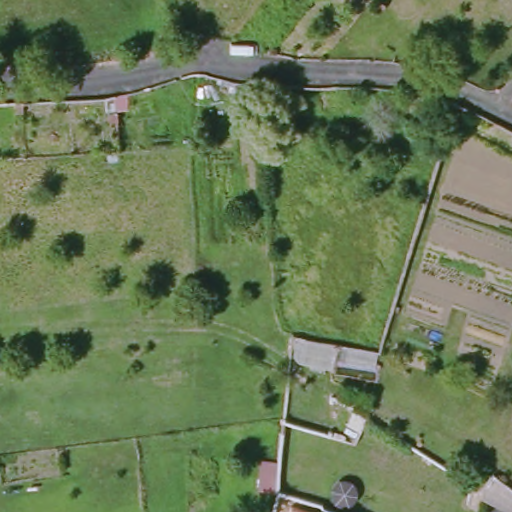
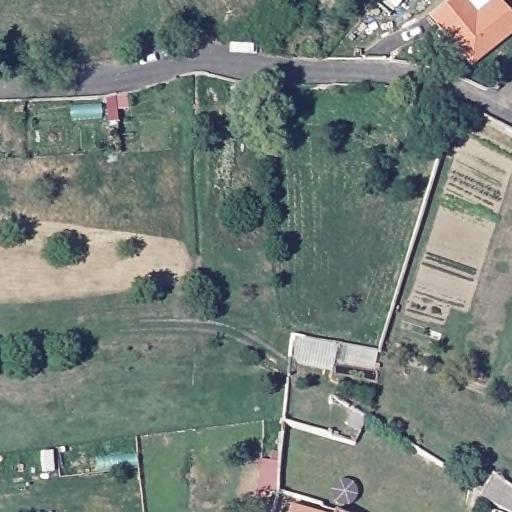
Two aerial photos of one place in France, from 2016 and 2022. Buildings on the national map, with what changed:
new [(454,0),(466,0),(475,12),(490,0),(501,0),(512,14),(512,34),(471,69),(430,20),(454,0)]
unchanged [(482,490),(494,474),(512,488),(512,490),(503,506),(482,490)]
unchanged [(306,512),(291,512),(292,507),(306,512)]
unchanged [(333,512),(327,512),(328,510),(333,512)]

